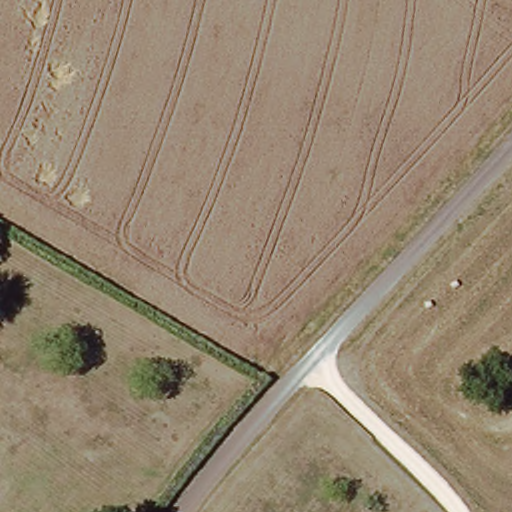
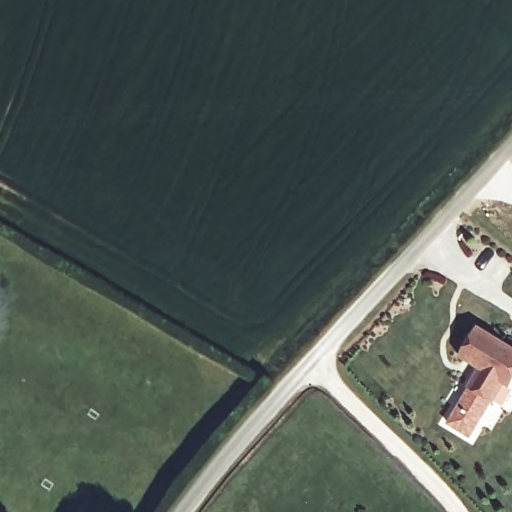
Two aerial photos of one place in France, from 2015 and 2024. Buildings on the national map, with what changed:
new [(478,367),(460,357),(478,325),(512,346),(512,388),(505,383),(477,436),(448,423),(478,367)]

